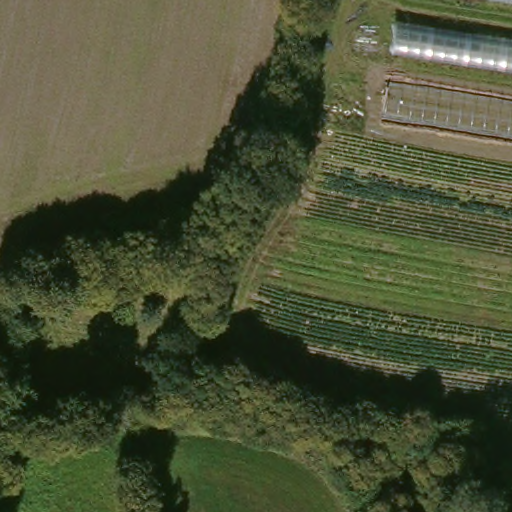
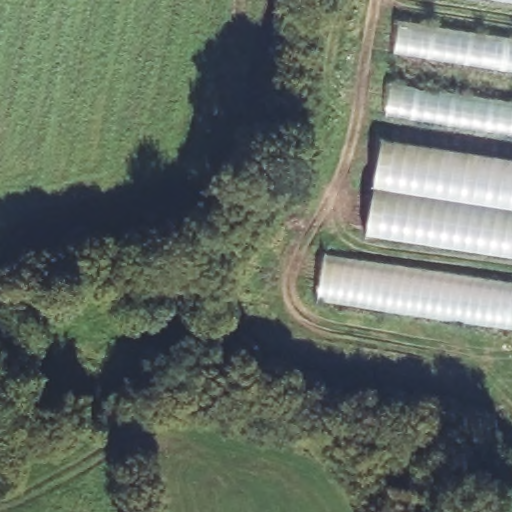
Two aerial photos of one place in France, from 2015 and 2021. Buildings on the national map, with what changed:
unchanged [(494,0),(512,0),(512,3),(494,0)]
new [(394,53),(398,25),(512,42),(512,73),(394,53)]
new [(385,117),(389,87),(512,106),(512,137),(385,117)]
new [(365,238),(380,141),(512,161),(512,260),(365,238)]
new [(317,301),(324,261),(512,288),(512,332),(317,301)]

